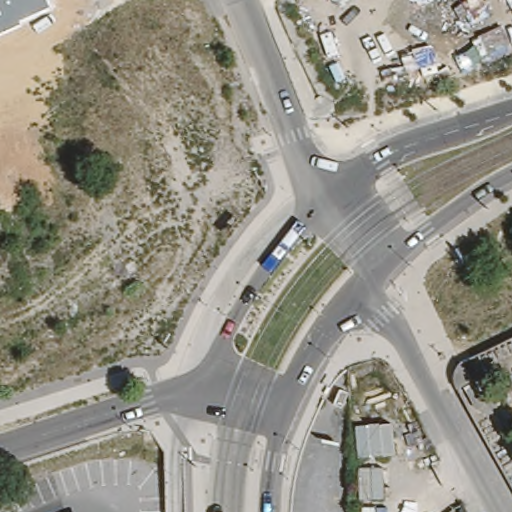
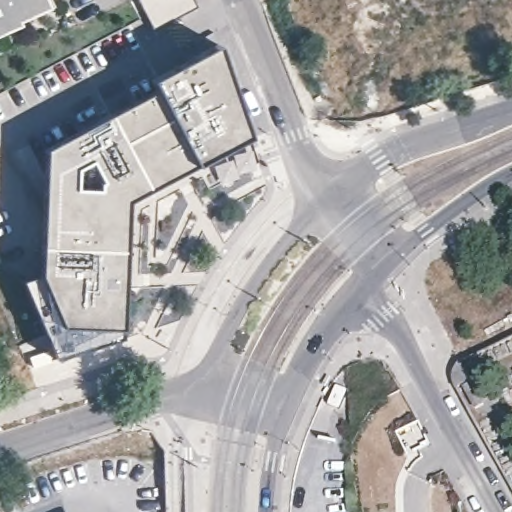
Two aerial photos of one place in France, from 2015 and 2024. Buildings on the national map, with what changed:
unchanged [(20,24),(0,33),(0,0),(46,0),(50,8),(18,20),(20,24)]
new [(197,5),(154,28),(138,0),(194,0),(197,5)]
new [(250,137),(198,164),(128,201),(125,328),(123,328),(123,338),(58,359),(23,278),(40,272),(45,146),(156,89),(151,78),(220,42),(250,137)]
new [(467,512),(459,512),(459,504),(461,502),(467,512)]

